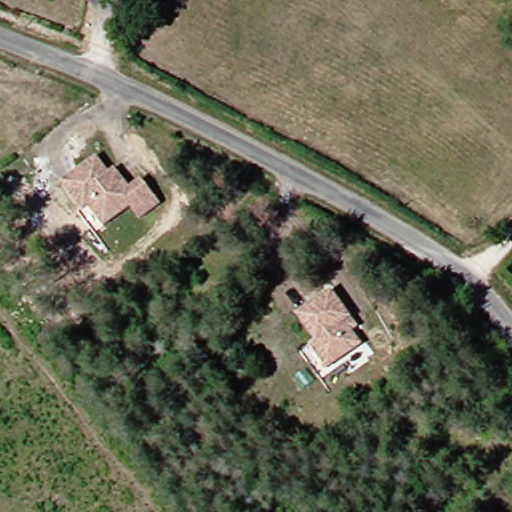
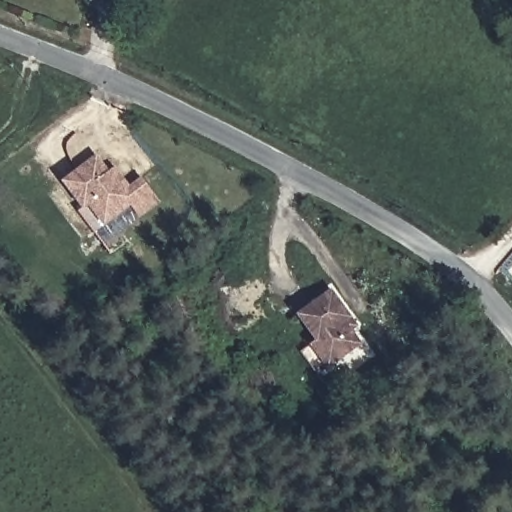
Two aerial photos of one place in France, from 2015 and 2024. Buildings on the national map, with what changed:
unchanged [(149,180),(167,204),(147,219),(138,207),(111,226),(96,206),(91,210),(70,182),(104,157),(116,173),(122,169),(130,180),(137,189),(149,180)]
unchanged [(334,370),(316,345),(322,341),(303,314),(337,289),(357,317),(363,326),(357,330),(368,345),(334,370)]

